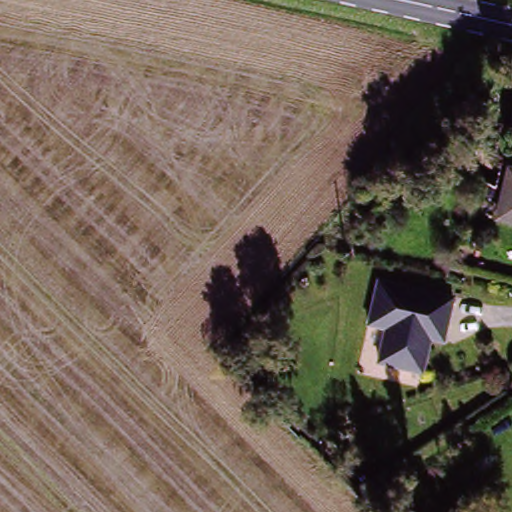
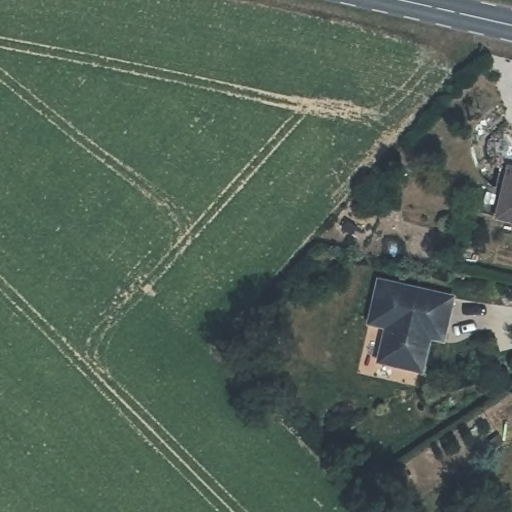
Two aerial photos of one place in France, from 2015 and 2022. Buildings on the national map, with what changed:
unchanged [(512,172),(512,223),(503,221),(511,171),(512,172)]
unchanged [(432,339),(426,374),(382,366),(388,331),(371,328),(379,284),(454,298),(447,332),(446,341),(432,339)]

